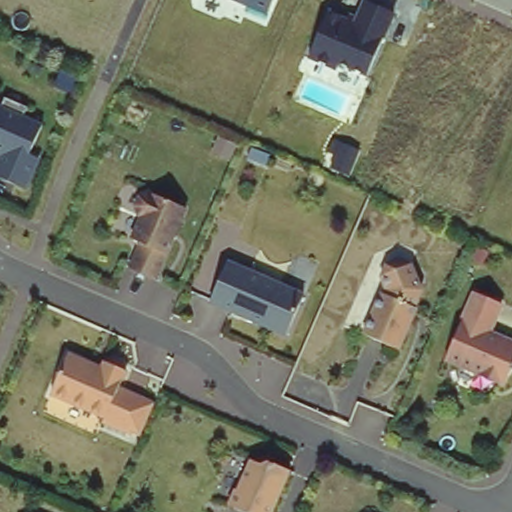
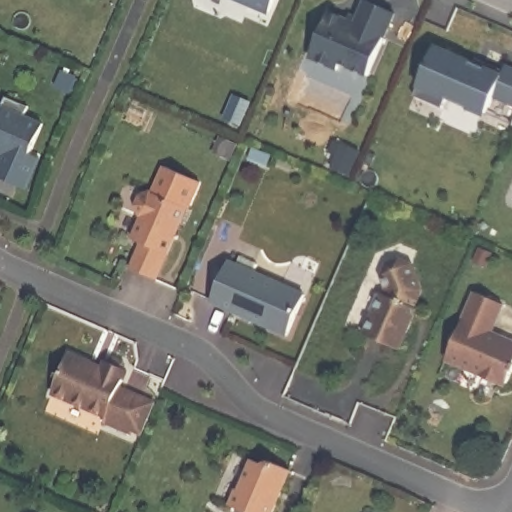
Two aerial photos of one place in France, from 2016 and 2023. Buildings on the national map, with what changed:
unchanged [(233,0),(274,0),(268,15),(233,0)]
unchanged [(340,65),(337,72),(306,58),(325,13),(351,24),(361,0),(369,0),(395,13),(368,77),(340,65)]
new [(501,71),(512,75),(512,110),(489,100),(482,117),(465,110),(463,113),(441,103),(437,112),(410,100),(430,51),(496,79),(501,71)]
unchanged [(5,100),(9,91),(32,101),(28,110),(47,118),(33,148),(43,152),(30,183),(0,170),(0,162),(8,144),(5,143),(6,140),(0,138),(0,98),(5,100)]
new [(341,144),(358,152),(348,176),(330,168),(341,144)]
unchanged [(155,191),(165,166),(208,184),(196,221),(186,217),(161,275),(136,264),(147,240),(138,235),(145,213),(142,203),(145,194),(155,191)]
unchanged [(403,254),(415,259),(426,285),(415,310),(417,311),(403,345),(367,329),(376,307),(377,308),(386,288),(388,289),(390,284),(385,270),(390,259),(403,254)]
unchanged [(312,290),(294,330),(218,296),(235,256),(312,290)]
unchanged [(495,329),(507,334),(508,332),(512,335),(512,377),(507,375),(507,377),(453,353),(481,288),(509,300),(495,329)]
unchanged [(144,431),(136,428),(135,429),(106,418),(108,412),(54,391),(70,351),(91,360),(90,363),(104,368),(108,358),(109,359),(115,356),(124,359),(127,366),(128,366),(121,384),(149,395),(157,398),(144,431)]
unchanged [(267,459),(274,456),(295,464),(277,512),(260,512),(236,503),(242,486),(245,487),(256,455),(267,459)]

